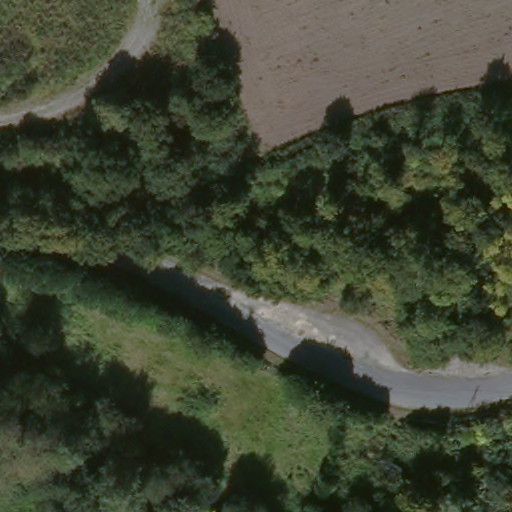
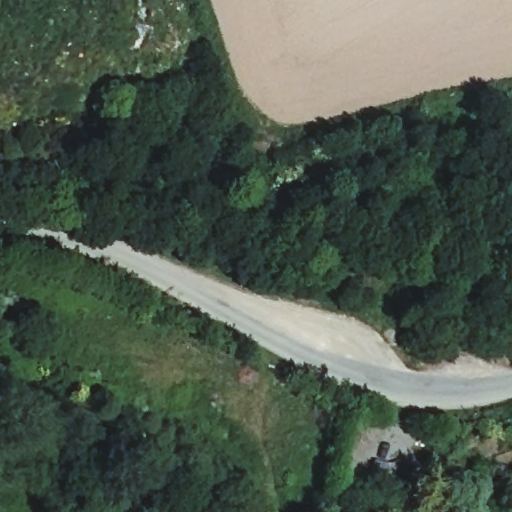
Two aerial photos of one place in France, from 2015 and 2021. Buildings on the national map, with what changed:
unchanged [(502,482),(496,469),(512,463),(512,478),(502,482)]

